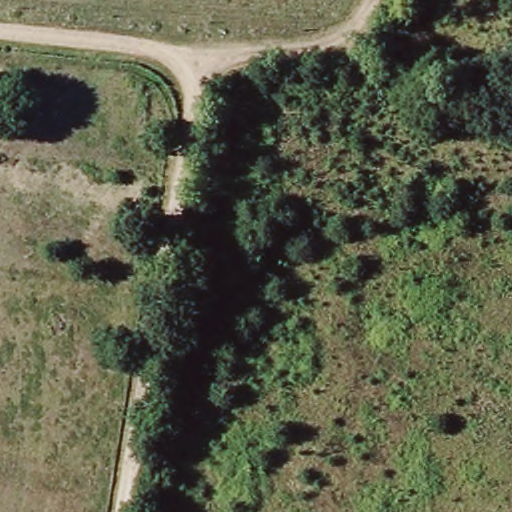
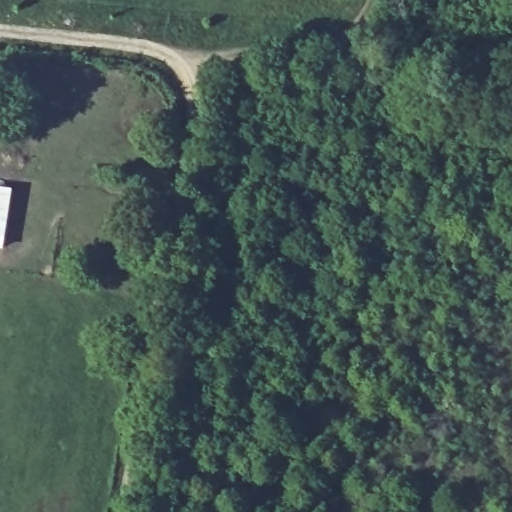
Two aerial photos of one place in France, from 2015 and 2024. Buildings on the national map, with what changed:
new [(0,250),(0,189),(12,190),(4,250),(0,250)]

